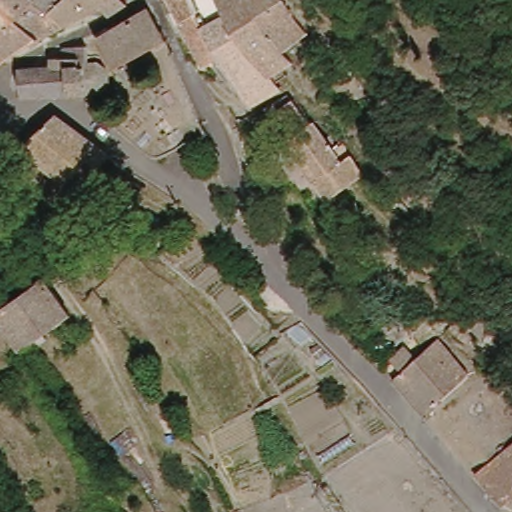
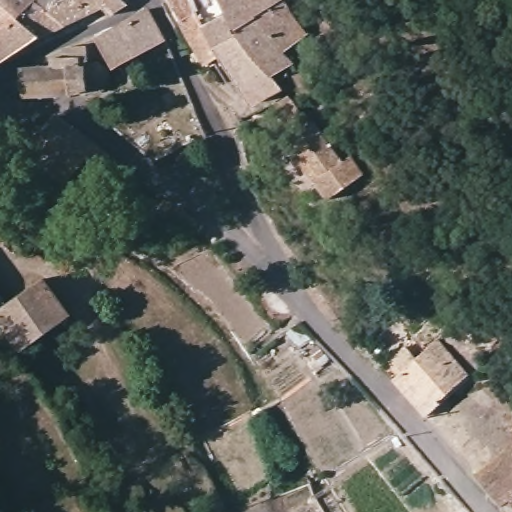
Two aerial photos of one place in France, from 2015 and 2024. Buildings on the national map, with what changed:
unchanged [(122,6),(107,15),(95,5),(60,21),(32,34),(0,60),(0,0),(115,0),(122,6)]
unchanged [(277,92),(269,95),(247,106),(241,95),(222,58),(213,63),(206,66),(197,50),(185,25),(171,0),(253,0),(283,52),(292,66),(296,72),(274,84),(277,92)]
unchanged [(306,38),(283,52),(253,0),(285,0),(306,38)]
unchanged [(92,45),(145,15),(162,48),(109,72),(92,45)]
unchanged [(30,100),(17,100),(15,72),(30,71),(33,69),(35,71),(46,70),(47,60),(58,59),(59,54),(83,53),(85,70),(97,67),(103,75),(100,85),(85,86),(87,105),(78,107),(75,99),(64,101),(61,99),(48,101),(45,100),(34,101),(30,100)]
unchanged [(295,170),(289,173),(262,130),(272,123),(282,117),(269,95),(277,92),(285,89),(298,110),(318,145),(327,140),(345,172),(312,190),(307,192),(295,170)]
unchanged [(23,155),(20,151),(52,120),(106,159),(97,169),(85,161),(62,185),(27,157),(23,155)]
unchanged [(10,195),(0,190),(0,182),(3,184),(13,189),(10,195)]
unchanged [(43,275),(71,313),(17,352),(0,329),(0,301),(2,303),(43,275)]
unchanged [(445,346),(474,383),(432,418),(402,387),(412,376),(402,367),(415,356),(425,365),(439,352),(445,346)]
unchanged [(511,437),(512,436),(512,438),(511,437)]
unchanged [(467,468),(511,437),(512,438),(512,497),(497,508),(467,468)]

